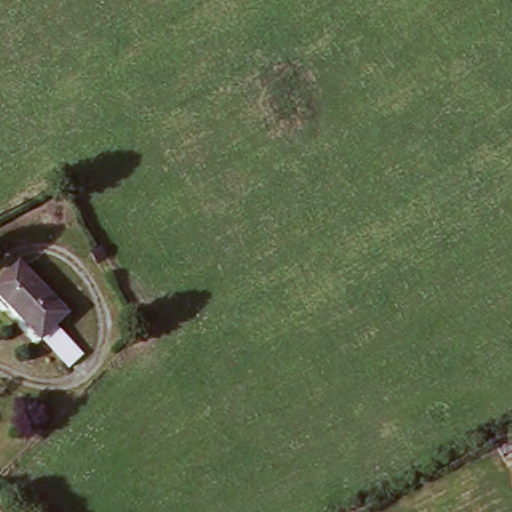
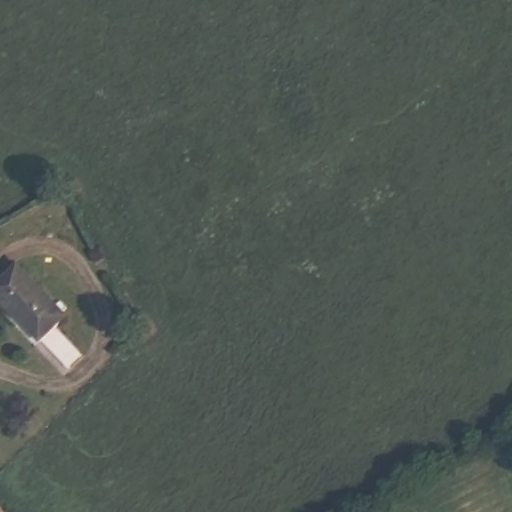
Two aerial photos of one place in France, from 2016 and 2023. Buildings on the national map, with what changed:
unchanged [(38,335),(0,299),(0,273),(12,261),(63,309),(52,321),(38,335)]

